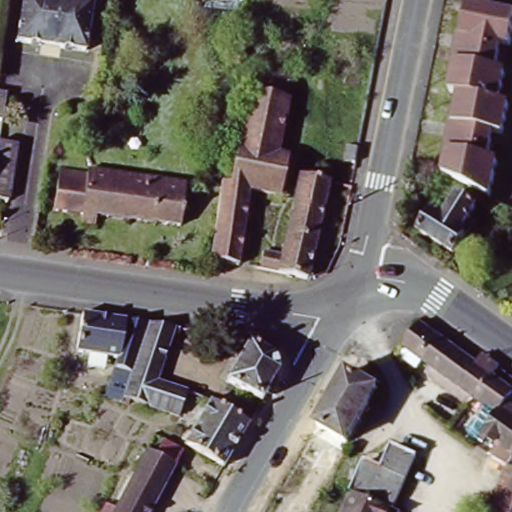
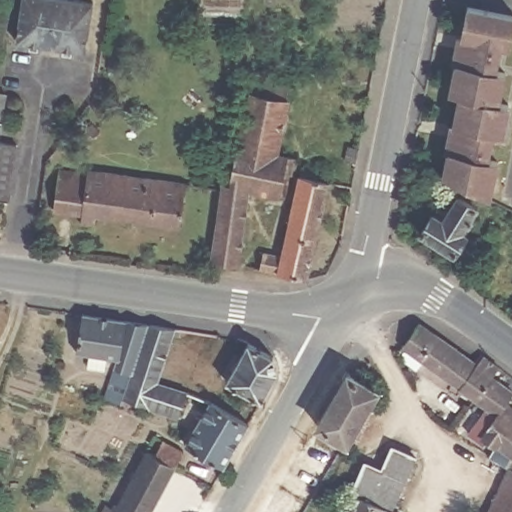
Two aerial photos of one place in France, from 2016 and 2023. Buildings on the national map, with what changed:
unchanged [(90,3),(82,52),(13,42),(20,0),(71,0),(90,3)]
unchanged [(469,131),(471,123),(487,126),(492,104),(492,99),(450,90),(455,66),(460,40),(467,10),(512,20),(512,29),(507,50),(501,48),(495,74),(505,75),(499,105),(498,106),(507,109),(501,139),(492,136),(486,162),(486,164),(480,160),(464,154),(469,131)]
unchanged [(252,73),(292,80),(287,102),(281,136),(277,157),(295,161),(292,176),(288,175),(284,197),(245,190),(247,205),(239,268),(211,262),(221,190),(222,185),(232,185),(248,95),(252,73)]
unchanged [(494,164),(497,165),(488,201),(442,179),(448,154),(454,128),(460,97),(449,95),(450,90),(492,99),(492,104),(487,126),(471,123),(469,131),(464,154),(480,160),(486,164),(492,167),(494,164)]
unchanged [(0,127),(0,98),(6,100),(12,100),(10,111),(7,128),(0,127)]
unchanged [(0,203),(0,145),(17,149),(8,205),(0,203)]
unchanged [(363,156),(360,170),(350,169),(352,155),(363,156)]
unchanged [(260,272),(263,255),(281,258),(301,170),(315,173),(317,171),(319,172),(321,172),(322,173),(322,175),(323,176),(322,182),(327,184),(306,282),(260,272)]
unchanged [(186,185),(180,230),(96,217),(95,228),(81,226),(82,215),(55,211),(60,171),(90,175),(95,171),(186,185)]
unchanged [(475,215),(460,237),(465,241),(452,260),(420,239),(432,220),(437,222),(452,200),(475,215)]
unchanged [(76,352),(82,313),(149,323),(131,375),(115,368),(117,359),(76,352)]
unchanged [(192,418),(122,400),(131,375),(149,323),(175,326),(153,379),(198,392),(192,418)]
unchanged [(476,370),(482,362),(500,376),(495,385),(491,381),(474,405),(401,352),(418,330),(453,354),(476,370)]
unchanged [(261,405),(225,385),(248,345),(274,360),(276,378),(261,405)]
unchanged [(377,396),(347,448),(344,446),(316,428),(344,379),(361,387),(377,396)]
unchanged [(491,381),(495,385),(512,396),(512,397),(502,411),(482,441),(479,445),(466,438),(484,412),(474,405),(491,381)]
unchanged [(184,445),(209,399),(247,422),(222,466),(184,445)]
unchanged [(512,418),(512,459),(510,461),(482,441),(502,411),(512,418)]
unchanged [(153,436),(183,451),(175,466),(151,512),(113,512),(145,451),(153,436)]
unchanged [(346,512),(352,497),(366,468),(380,475),(391,450),(414,460),(392,512),(346,512)]
unchanged [(512,481),(512,480),(512,512),(486,512),(502,476),(512,481)]

